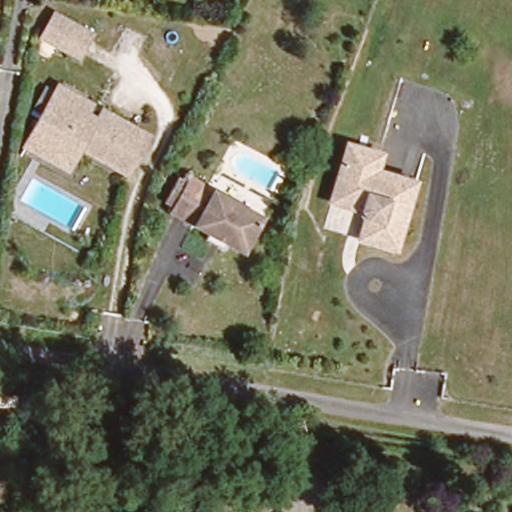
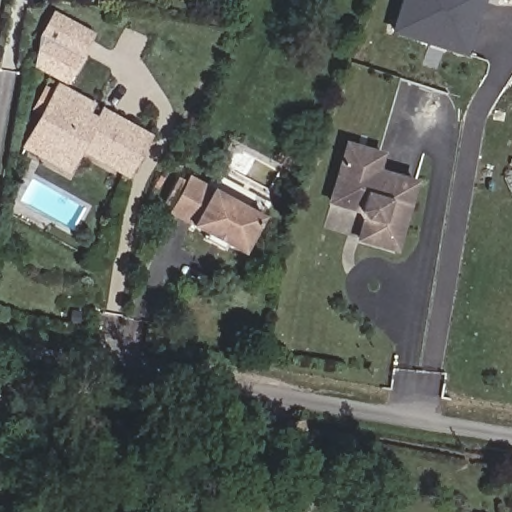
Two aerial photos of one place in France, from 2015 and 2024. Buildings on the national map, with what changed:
new [(468,58),(398,38),(409,0),(485,0),(468,58)]
unchanged [(89,28),(83,52),(41,42),(48,18),(89,28)]
unchanged [(26,143),(52,90),(70,99),(96,112),(145,137),(126,176),(77,152),(70,165),(65,174),(21,152),(26,143)]
unchanged [(322,199),(335,158),(340,141),(375,150),(370,167),(410,178),(392,249),(354,239),(358,217),(352,207),(322,199)]
unchanged [(258,213),(237,252),(164,213),(184,174),(258,213)]
demolished [(105,361),(107,336),(124,339),(154,344),(150,366),(105,361)]
unchanged [(185,349),(182,370),(150,366),(154,344),(185,349)]

